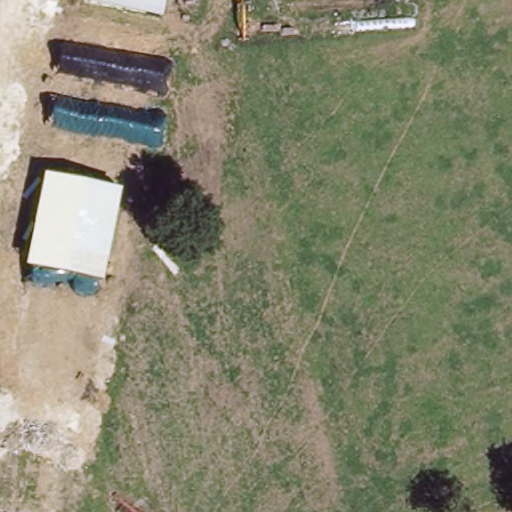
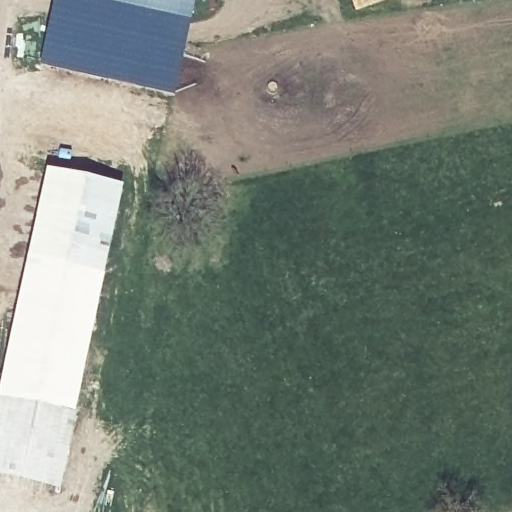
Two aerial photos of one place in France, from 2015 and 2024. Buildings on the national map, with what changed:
new [(174,97),(39,66),(54,0),(192,0),(174,97)]
unchanged [(104,280),(27,262),(44,172),(122,187),(104,280)]
new [(75,415),(0,400),(0,388),(27,262),(104,280),(75,415)]

